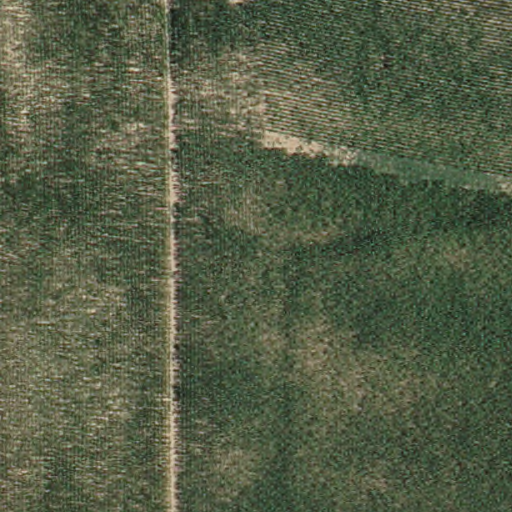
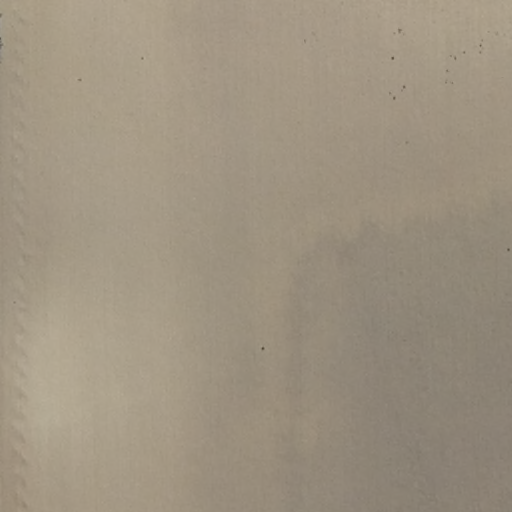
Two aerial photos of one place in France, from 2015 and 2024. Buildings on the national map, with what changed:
[]

